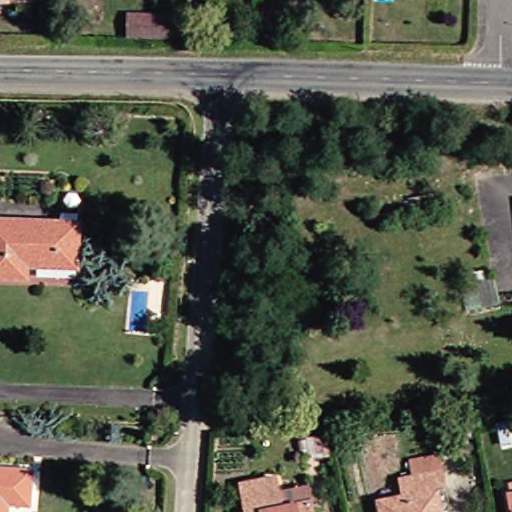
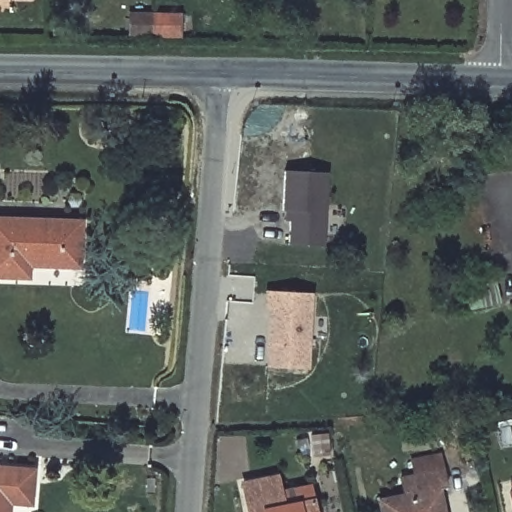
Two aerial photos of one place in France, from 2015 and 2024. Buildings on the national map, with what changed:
unchanged [(0,0),(18,0),(19,9),(0,9),(0,0)]
unchanged [(171,39),(146,38),(124,37),(126,17),(147,17),(173,18),(171,39)]
new [(285,211),(287,172),(329,174),(325,247),(291,245),(292,222),(286,221),(287,212),(285,211)]
unchanged [(83,265),(46,264),(44,259),(32,260),(31,278),(0,277),(0,218),(84,221),(83,265)]
unchanged [(495,298),(465,302),(461,273),(490,268),(495,298)]
new [(267,292),(312,293),(310,370),(270,369),(271,322),(276,322),(276,316),(271,316),(272,309),(267,309),(267,292)]
unchanged [(333,456),(315,460),(311,439),(329,437),(333,456)]
unchanged [(409,477),(425,473),(420,458),(450,453),(459,490),(447,492),(449,512),(390,512),(388,500),(413,494),(409,477)]
unchanged [(37,502),(3,501),(4,510),(15,512),(0,512),(0,466),(40,469),(37,502)]
unchanged [(284,476),(291,506),(322,500),(324,512),(259,512),(254,482),(284,476)]

